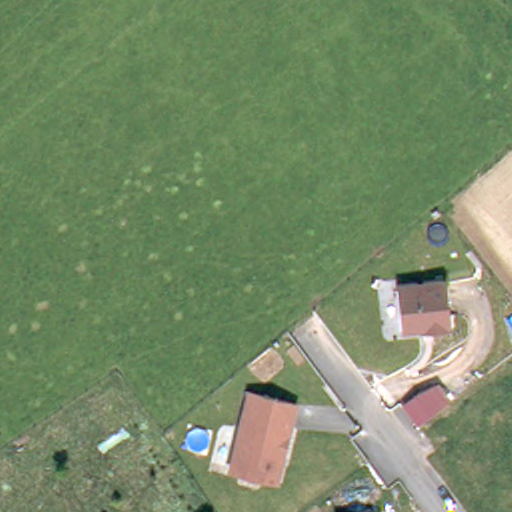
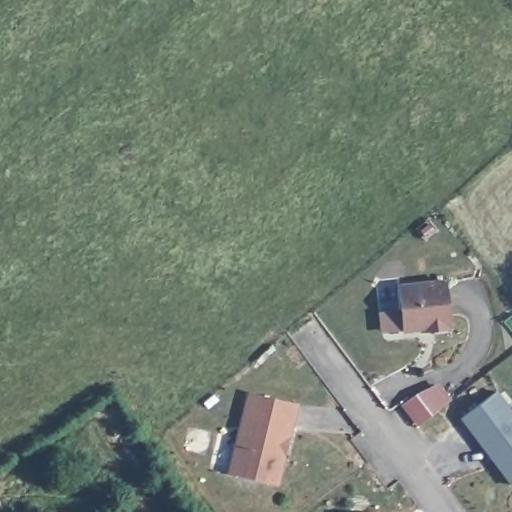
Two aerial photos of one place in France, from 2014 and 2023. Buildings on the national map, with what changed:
unchanged [(419,331),(400,333),(395,288),(443,283),(448,331),(430,333),(419,334),(419,331)]
new [(452,398),(418,423),(402,404),(438,382),(452,398)]
new [(512,406),(512,486),(460,418),(498,388),(512,406)]
unchanged [(293,408),(289,428),(284,427),(282,433),(275,467),(276,467),(278,472),(275,483),(272,486),(228,475),(247,397),(293,408)]

